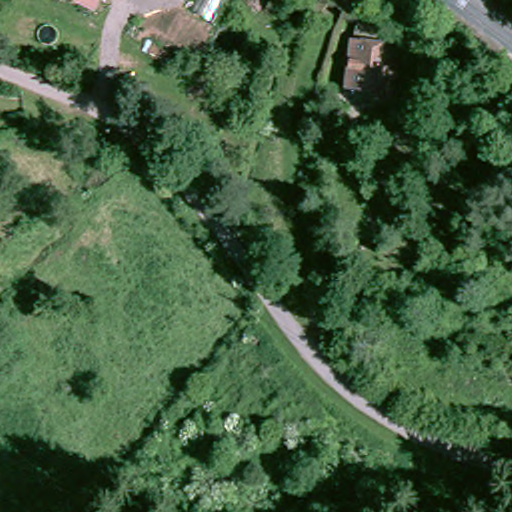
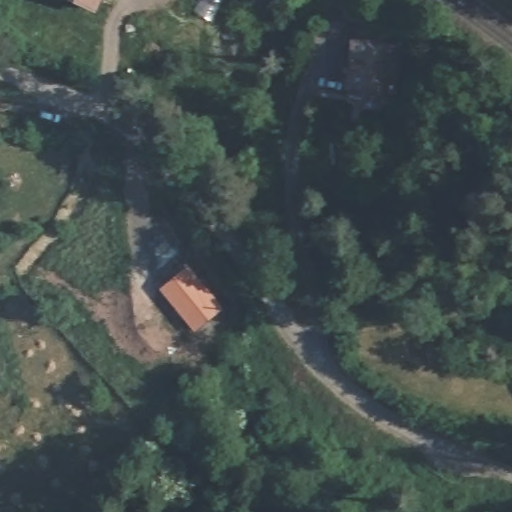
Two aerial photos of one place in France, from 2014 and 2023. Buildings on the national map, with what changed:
unchanged [(98,6),(85,0),(100,0),(98,6)]
unchanged [(393,47),(390,95),(353,91),(357,44),(393,47)]
new [(189,265),(223,310),(193,332),(158,290),(189,265)]

